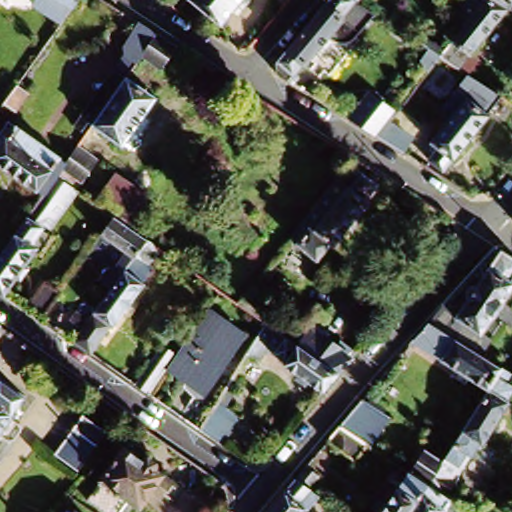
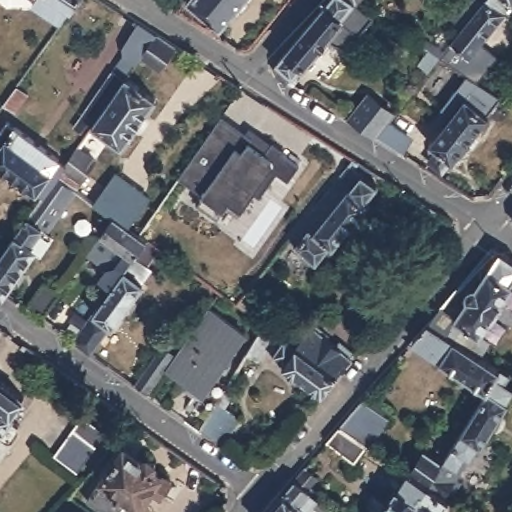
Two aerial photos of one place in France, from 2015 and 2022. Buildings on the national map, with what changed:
unchanged [(55,24),(26,5),(29,0),(72,0),(55,24)]
unchanged [(217,26),(185,0),(239,0),(217,26)]
unchanged [(290,42),(314,14),(325,1),(326,0),(360,0),(369,6),(372,8),(374,9),(355,32),(354,34),(353,35),(352,35),(351,36),(350,37),(348,38),(347,38),(345,39),(344,39),(342,40),(340,40),(339,40),(337,40),(335,39),(334,39),(332,39),(332,38),(330,38),(329,37),(327,36),(326,35),(305,61),(302,59),(289,75),(284,72),(279,69),(278,67),(277,64),(277,61),(277,59),(278,56),(290,42)]
unchanged [(440,62),(465,32),(453,22),(471,0),(512,0),(512,7),(510,8),(507,6),(499,15),(502,17),(457,73),(440,62)]
unchanged [(153,40),(170,50),(155,71),(137,58),(121,80),(89,125),(83,122),(78,130),(70,124),(114,62),(112,54),(132,26),(150,38),(153,40)]
unchanged [(430,49),(426,53),(422,50),(425,45),(430,49)]
unchanged [(426,53),(433,58),(440,62),(435,69),(422,59),(426,53)]
unchanged [(480,88),(477,92),(495,105),(442,175),(427,164),(432,158),(427,154),(430,150),(428,148),(470,93),(457,83),(462,77),(480,88)]
unchanged [(30,88),(18,106),(7,98),(20,80),(30,88)]
unchanged [(151,101),(119,146),(89,125),(121,80),(151,101)]
unchanged [(355,124),(374,100),(388,111),(379,121),(385,125),(389,120),(411,137),(400,152),(375,137),(355,124)]
new [(222,116),(254,139),(250,144),(266,155),(274,143),(285,151),(284,153),(301,165),(290,181),(279,173),(262,197),(255,193),(242,211),(230,203),(218,220),(196,204),(202,196),(178,179),(222,116)]
unchanged [(40,260),(34,255),(2,298),(0,297),(0,263),(37,211),(44,200),(8,175),(4,177),(0,174),(0,139),(10,126),(67,167),(79,151),(95,163),(72,194),(44,234),(54,241),(40,260)]
unchanged [(367,170),(362,177),(383,195),(370,209),(373,212),(338,254),(335,251),(322,266),(296,244),(362,166),(367,170)]
unchanged [(110,174),(145,199),(125,227),(113,218),(90,203),(110,174)]
unchanged [(125,227),(143,240),(121,272),(111,287),(100,279),(107,269),(87,255),(100,236),(113,218),(125,227)]
unchanged [(165,255),(160,261),(157,258),(150,267),(153,270),(142,285),(145,287),(115,330),(112,329),(104,342),(83,327),(111,287),(121,272),(143,240),(165,255)]
unchanged [(450,299),(492,250),(512,263),(512,283),(510,285),(512,286),(512,287),(499,305),(502,306),(495,318),(492,316),(482,334),(490,340),(480,357),(427,324),(450,299)]
unchanged [(23,303),(40,278),(57,291),(40,315),(23,303)]
unchanged [(170,344),(185,354),(215,310),(250,335),(229,365),(223,361),(202,392),(172,372),(155,397),(140,386),(170,344)]
unchanged [(480,357),(500,370),(485,396),(437,365),(439,362),(410,343),(427,324),(480,357)]
unchanged [(309,325),(350,356),(338,374),(324,392),(280,363),(294,345),(309,325)]
unchanged [(0,332),(0,329),(2,330),(0,332)]
unchanged [(398,494),(411,475),(424,456),(440,466),(444,461),(485,396),(500,370),(509,376),(505,382),(512,387),(512,393),(507,401),(510,403),(483,445),(480,442),(471,456),(455,480),(444,497),(449,500),(442,509),(445,512),(383,512),(395,493),(398,494)]
unchanged [(240,415),(220,442),(200,428),(220,400),(240,415)]
unchanged [(330,448),(344,433),(362,411),(389,428),(373,452),(372,451),(360,470),(330,448)]
unchanged [(104,432),(75,471),(52,455),(81,415),(104,432)]
unchanged [(102,482),(101,481),(124,448),(142,461),(145,458),(147,459),(153,464),(154,466),(151,470),(166,480),(157,493),(150,489),(139,507),(128,500),(120,512),(100,512),(87,502),(102,482)]
unchanged [(317,474),(309,487),(318,494),(308,506),(305,503),(298,512),(264,512),(293,477),(304,464),(317,474)]
unchanged [(77,512),(72,512),(74,509),(77,512)]

